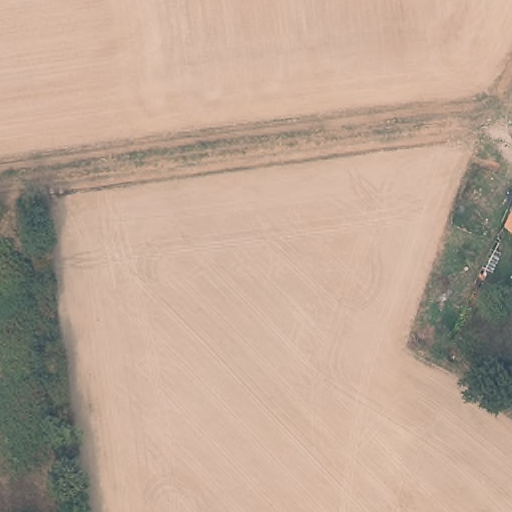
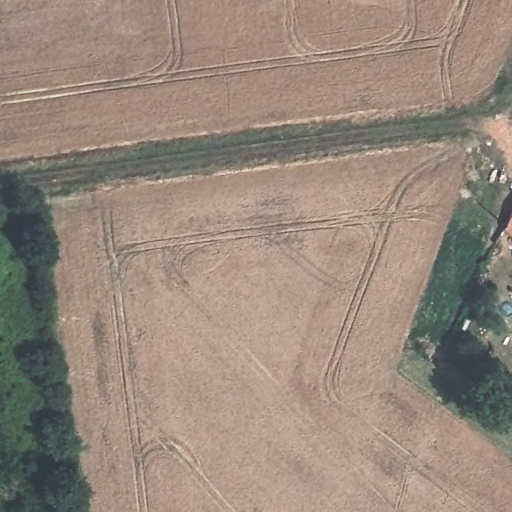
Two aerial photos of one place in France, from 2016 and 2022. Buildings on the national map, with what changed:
unchanged [(506,220),(512,207),(512,226),(506,220)]

